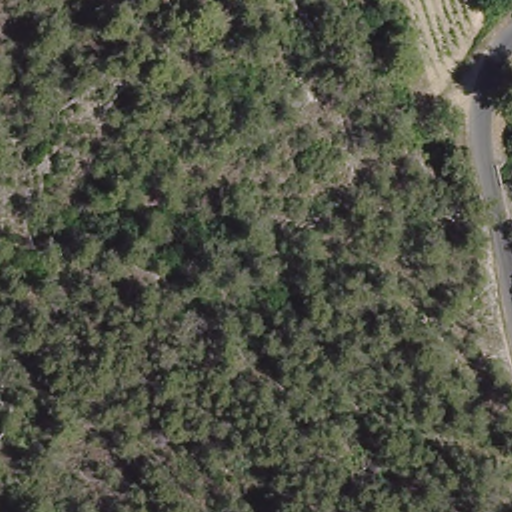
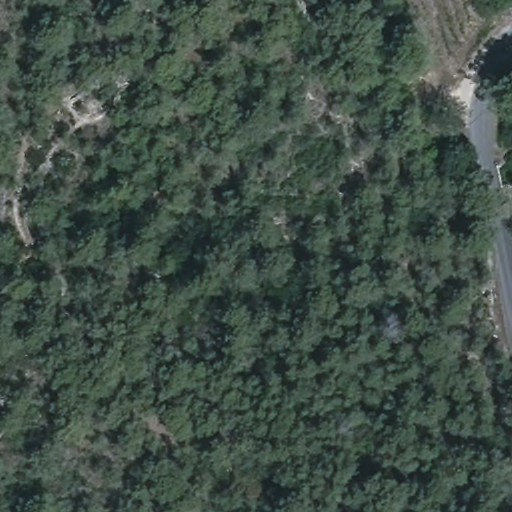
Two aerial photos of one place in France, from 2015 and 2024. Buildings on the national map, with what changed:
[]

